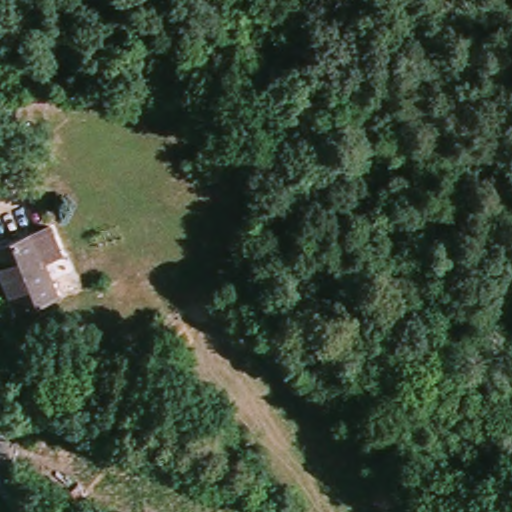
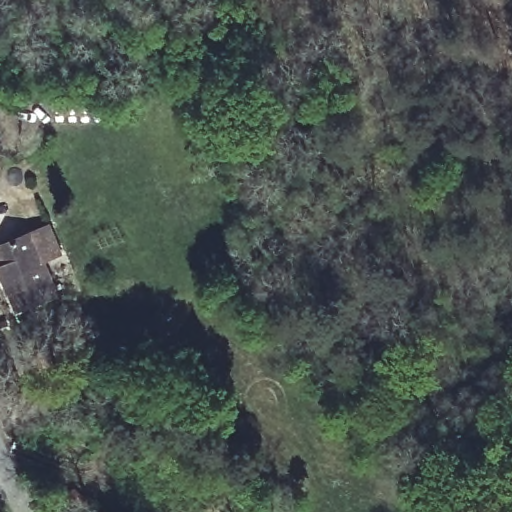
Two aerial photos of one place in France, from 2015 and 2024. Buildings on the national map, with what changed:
unchanged [(0,277),(0,245),(56,223),(67,248),(45,257),(57,287),(12,306),(0,277)]

